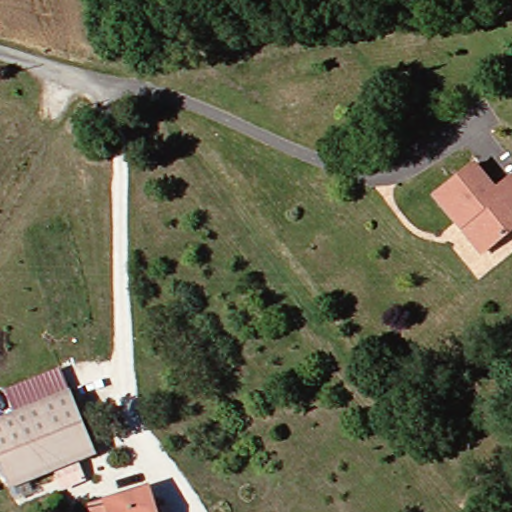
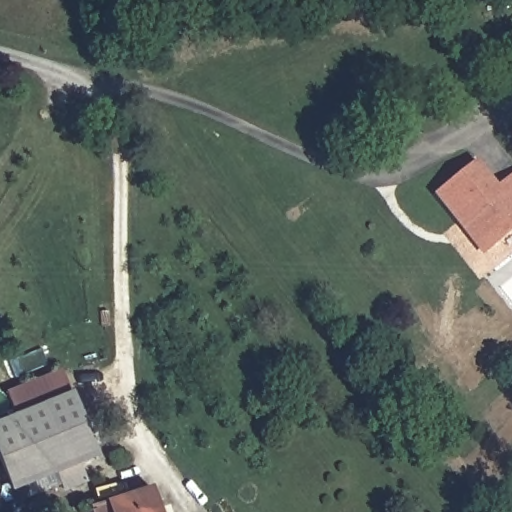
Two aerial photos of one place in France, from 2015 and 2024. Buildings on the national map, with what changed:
unchanged [(437,202),(476,169),(495,193),(512,179),(512,236),(495,250),(485,259),(461,230),(437,202)]
unchanged [(75,386),(98,450),(13,482),(0,448),(0,414),(75,386)]
unchanged [(156,504),(159,512),(129,512),(156,504)]

